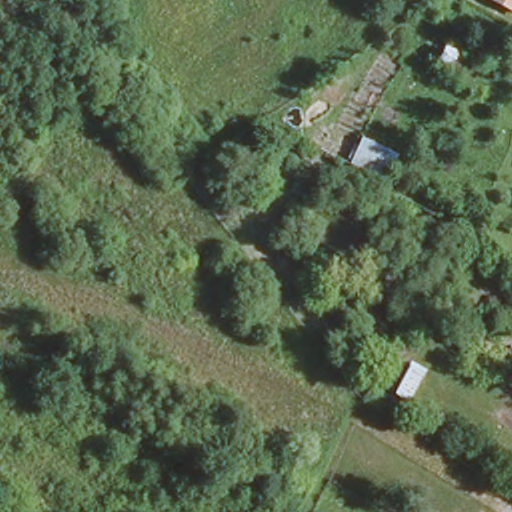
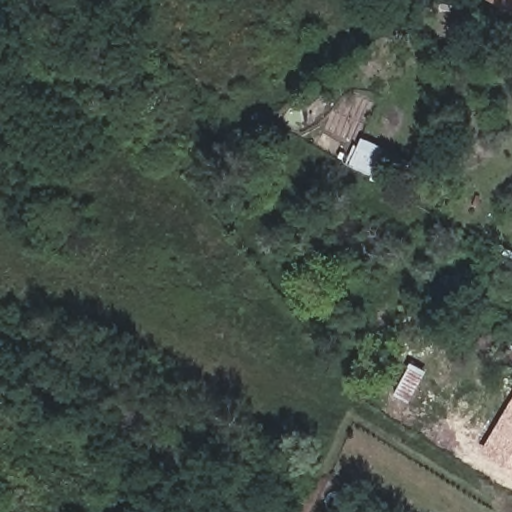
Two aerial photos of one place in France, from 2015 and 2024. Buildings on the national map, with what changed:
unchanged [(512,0),(512,13),(487,0),(512,0)]
unchanged [(503,357),(512,345),(512,363),(503,357)]
unchanged [(410,404),(392,393),(408,362),(426,371),(410,404)]
new [(481,451),(512,398),(512,470),(481,451)]

